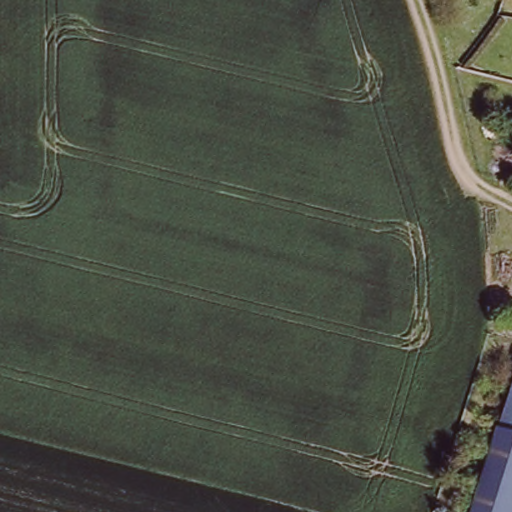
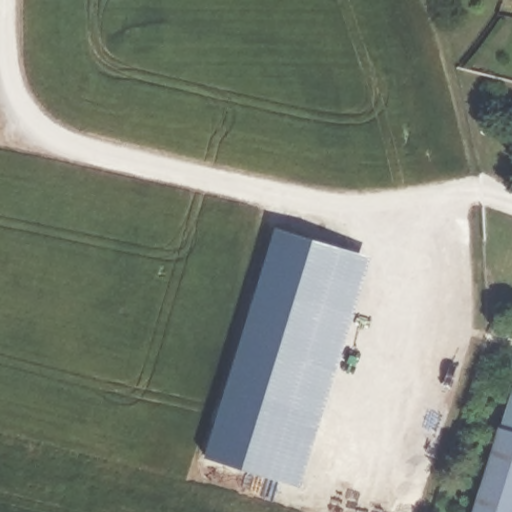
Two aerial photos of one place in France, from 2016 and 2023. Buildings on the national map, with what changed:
new [(371,255),(300,486),(205,456),(275,225),(371,255)]
unchanged [(512,396),(512,422),(505,420),(512,396)]
unchanged [(512,512),(476,512),(505,420),(512,422),(512,512)]

